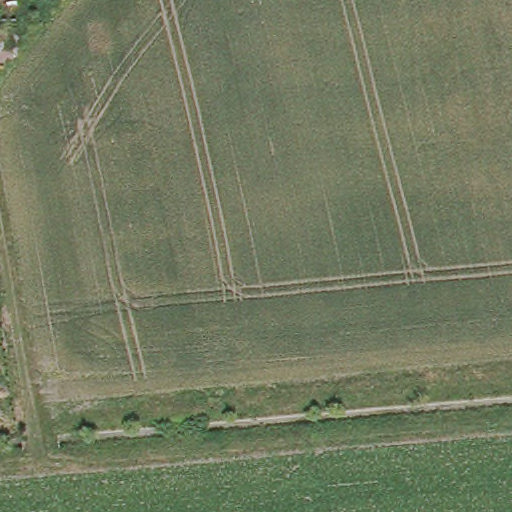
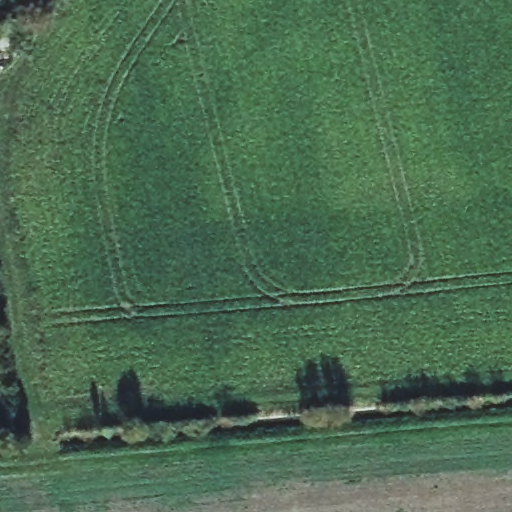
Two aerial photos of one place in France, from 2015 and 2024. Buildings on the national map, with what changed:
unchanged [(17,17),(4,18),(4,5),(17,4),(17,17)]

